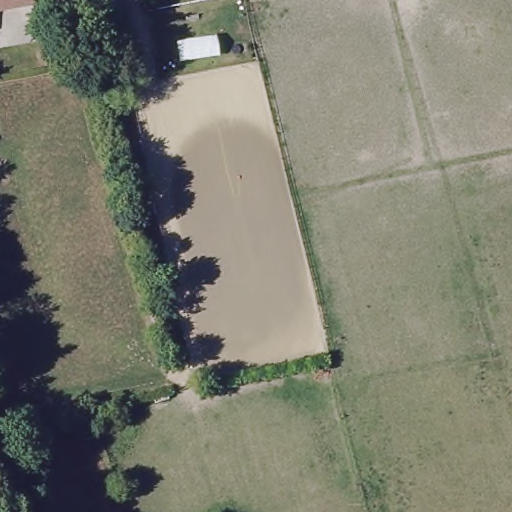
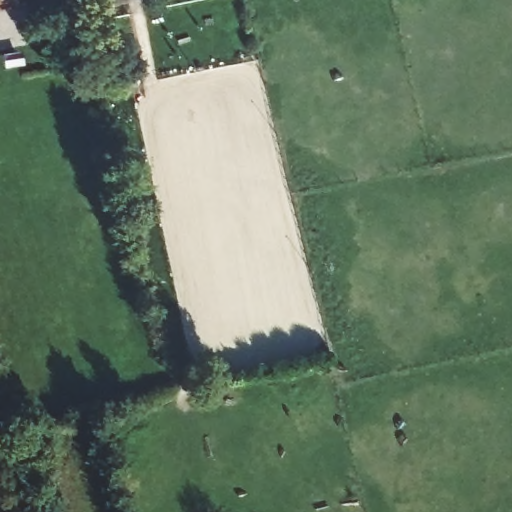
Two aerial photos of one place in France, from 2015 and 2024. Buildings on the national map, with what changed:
unchanged [(0,0),(36,0),(0,8),(0,0)]

